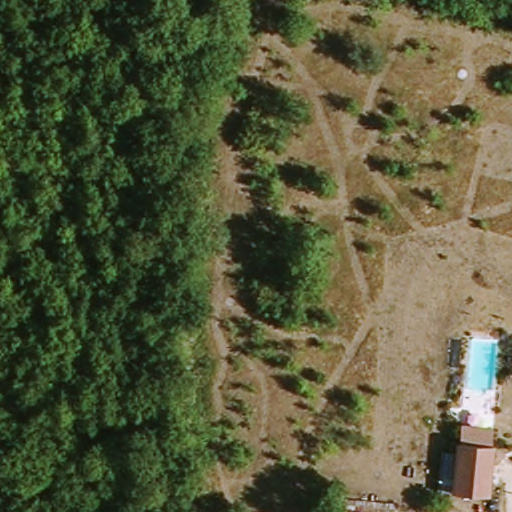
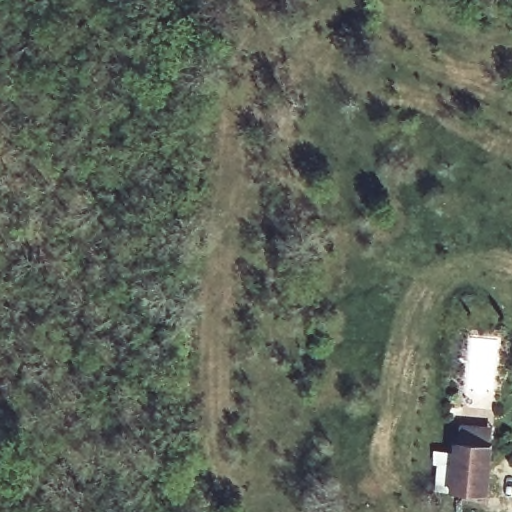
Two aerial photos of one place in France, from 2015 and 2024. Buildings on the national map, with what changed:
unchanged [(490,437),(487,493),(457,492),(459,437),(490,437)]

